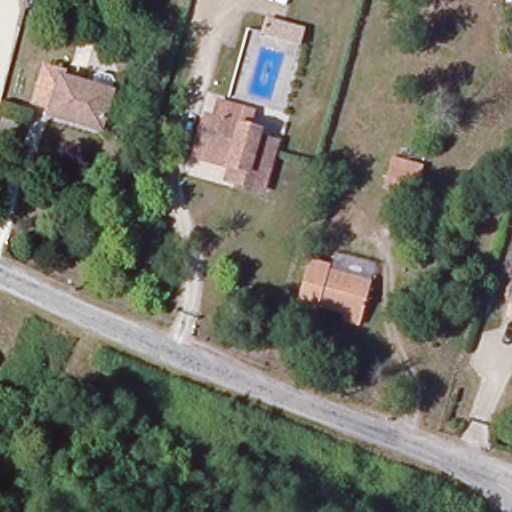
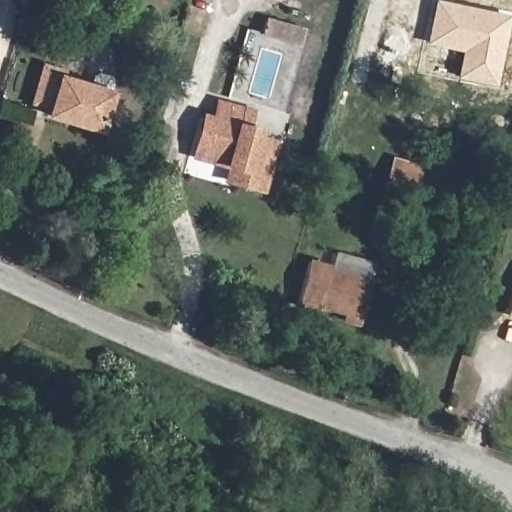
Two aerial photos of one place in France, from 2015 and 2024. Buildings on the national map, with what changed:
new [(463,51),(430,45),(440,0),(511,15),(496,85),(458,77),(463,51)]
new [(266,17),(304,28),(300,42),(262,31),(266,17)]
unchanged [(103,135),(51,119),(53,112),(35,106),(47,70),(64,75),(62,80),(113,95),(103,135)]
unchanged [(230,174),(194,162),(200,136),(205,120),(214,121),(219,104),(251,114),(247,131),(260,135),(258,142),(275,147),(263,195),(236,187),(227,185),(230,174)]
unchanged [(410,194),(385,186),(388,170),(414,177),(410,194)]
unchanged [(337,321),(339,312),(314,305),(312,310),(290,304),(305,261),(325,266),(323,272),(366,285),(357,317),(355,326),(337,321)]
unchanged [(512,302),(512,318),(508,317),(512,302)]

